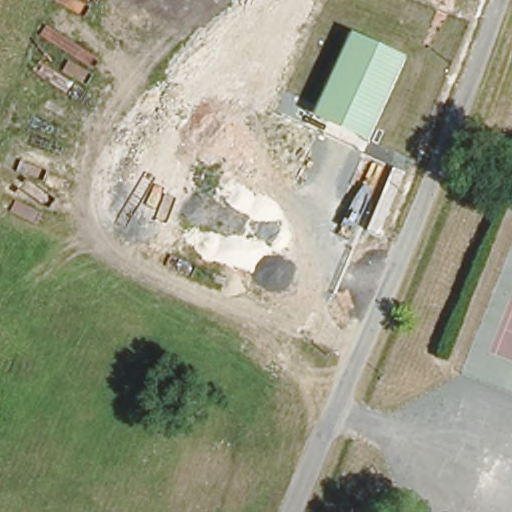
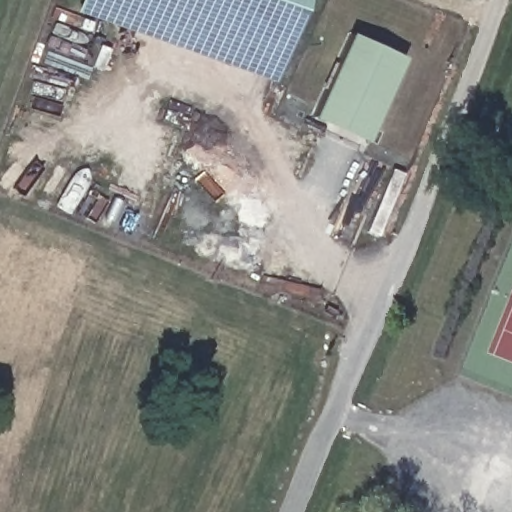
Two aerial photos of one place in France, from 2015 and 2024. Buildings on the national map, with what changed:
new [(303,0),(274,81),(76,12),(80,0),(303,0)]
unchanged [(371,142),(316,119),(355,35),(408,58),(371,142)]

